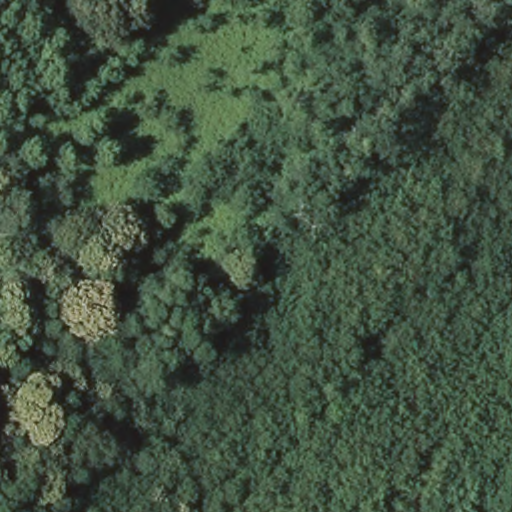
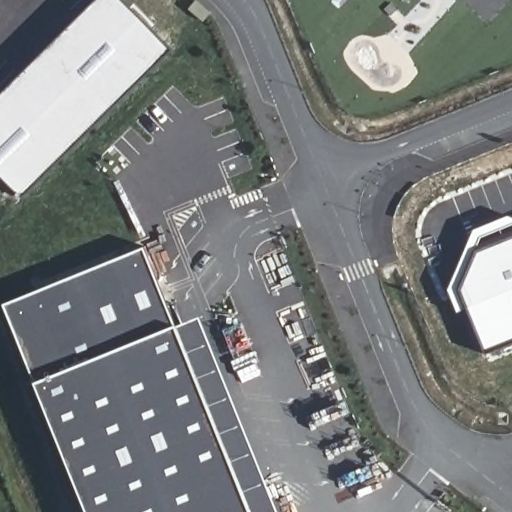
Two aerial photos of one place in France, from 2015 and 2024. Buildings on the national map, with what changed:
new [(99,0),(124,0),(173,50),(24,197),(0,173),(0,98),(99,0)]
new [(481,251),(512,238),(512,341),(487,352),(461,291),(481,251)]
new [(182,323),(259,512),(95,512),(9,301),(150,244),(182,323)]
new [(285,510),(278,512),(259,512),(182,323),(205,314),(285,510)]

